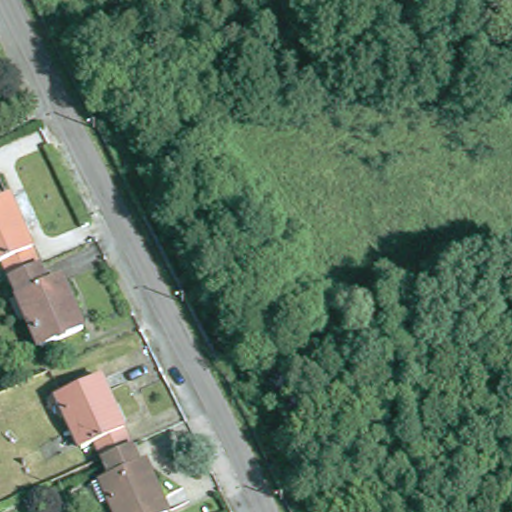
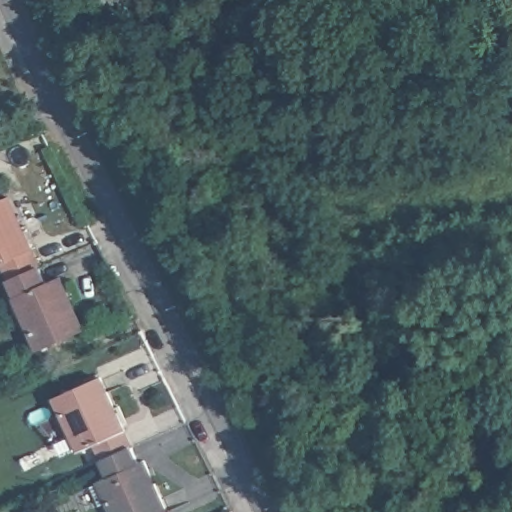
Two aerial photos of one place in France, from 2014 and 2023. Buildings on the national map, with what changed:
unchanged [(10,279),(3,262),(0,264),(0,200),(8,196),(38,266),(10,279)]
unchanged [(59,277),(83,329),(41,348),(10,279),(38,266),(45,283),(59,277)]
unchanged [(96,443),(81,449),(58,395),(100,377),(124,430),(123,431),(131,447),(103,459),(96,443)]
unchanged [(143,461),(166,512),(116,512),(110,500),(101,504),(93,485),(101,481),(101,480),(110,476),(103,459),(131,447),(138,463),(143,461)]

